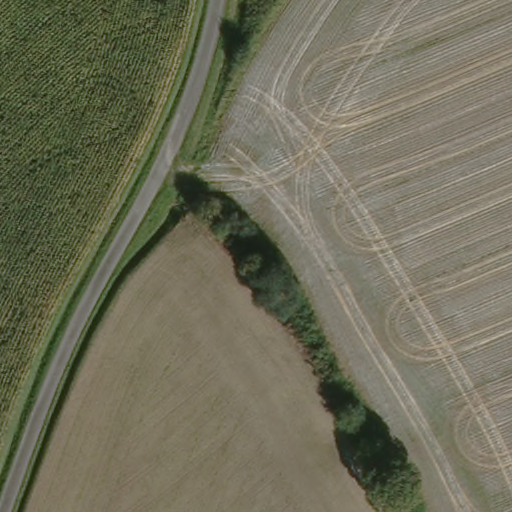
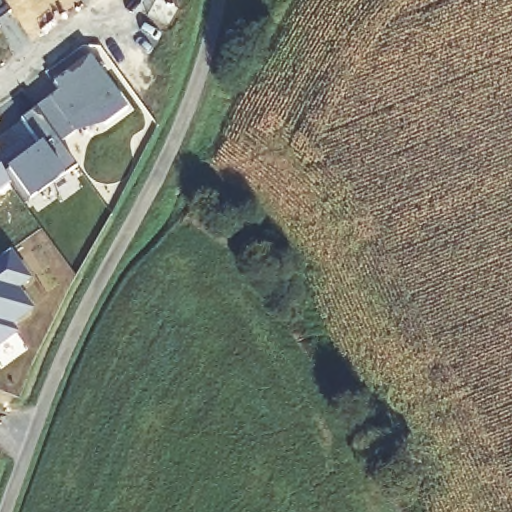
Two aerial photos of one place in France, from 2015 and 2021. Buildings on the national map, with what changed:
new [(6,9),(0,14),(0,1),(6,9)]
new [(60,146),(35,111),(59,93),(53,85),(89,59),(127,111),(105,127),(74,135),(60,146)]
new [(39,149),(20,121),(35,111),(60,146),(76,169),(29,202),(24,206),(2,175),(7,172),(39,149)]
new [(8,186),(0,192),(0,174),(8,186)]
new [(8,254),(29,282),(15,291),(29,309),(28,313),(10,327),(15,334),(0,346),(0,260),(8,254)]

